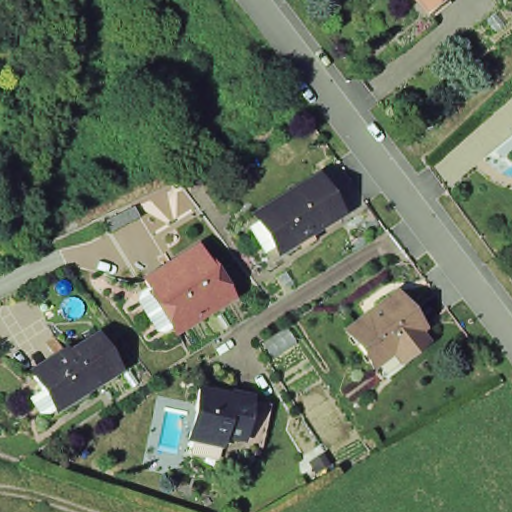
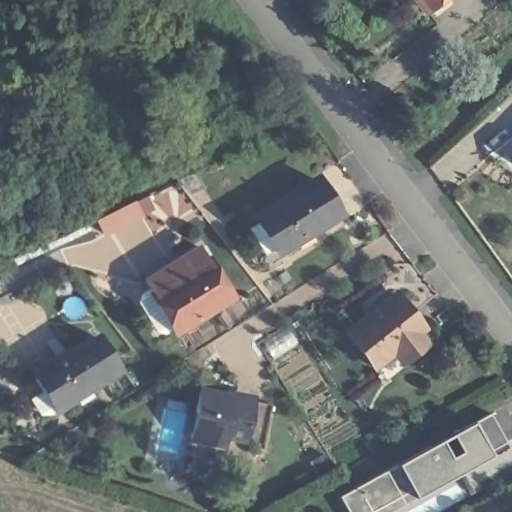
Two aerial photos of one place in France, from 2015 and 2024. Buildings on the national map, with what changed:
unchanged [(430,20),(414,0),(455,0),(430,20)]
unchanged [(309,235),(312,239),(281,258),(254,215),(278,200),(281,205),(319,182),(340,215),(309,235)]
unchanged [(175,327),(144,277),(199,244),(229,294),(175,327)]
unchanged [(424,347),(380,381),(344,335),(390,299),(417,335),(415,336),(424,347)]
unchanged [(82,392),(85,396),(55,414),(28,372),(52,357),(55,361),(91,339),(112,373),(82,392)]
unchanged [(217,447),(182,440),(184,432),(189,412),(194,391),(247,401),(265,405),(256,448),(238,444),(219,441),(217,447)]
new [(475,423),(490,414),(505,442),(490,450),(492,455),(415,498),(397,464),(474,421),(475,423)]
new [(397,464),(415,498),(390,512),(347,512),(339,496),(397,464)]

